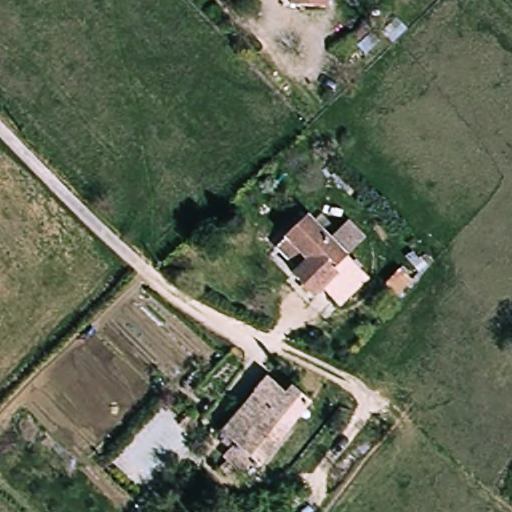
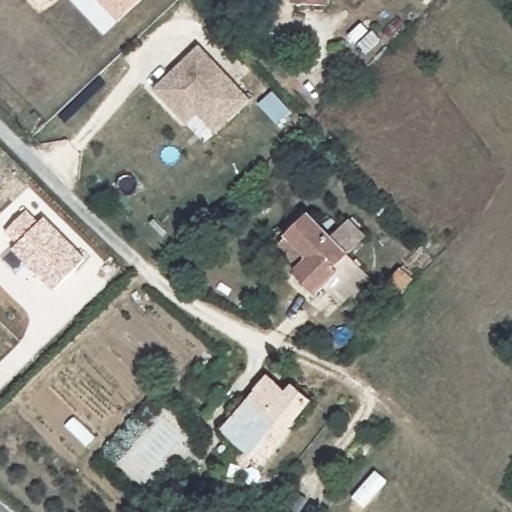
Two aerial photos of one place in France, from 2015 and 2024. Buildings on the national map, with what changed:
new [(117,20),(97,0),(137,0),(117,20)]
unchanged [(324,7),(291,6),(291,0),(324,0),(324,7)]
new [(191,120),(180,130),(171,120),(148,96),(193,53),(243,106),(217,131),(209,138),(191,120)]
new [(291,111),(277,123),(259,104),(273,92),(291,111)]
new [(13,251),(18,246),(6,233),(28,211),(40,224),(46,219),(86,259),(53,291),(13,251)]
unchanged [(324,244),(342,225),(358,241),(339,260),(362,283),(341,305),(322,287),(309,301),(287,279),(266,258),(279,244),(300,222),(324,244)]
unchanged [(261,382),(280,395),(286,389),(304,402),(260,466),(265,470),(252,489),(239,480),(250,463),(219,439),(261,382)]
unchanged [(232,474),(226,482),(217,476),(224,468),(232,474)]

